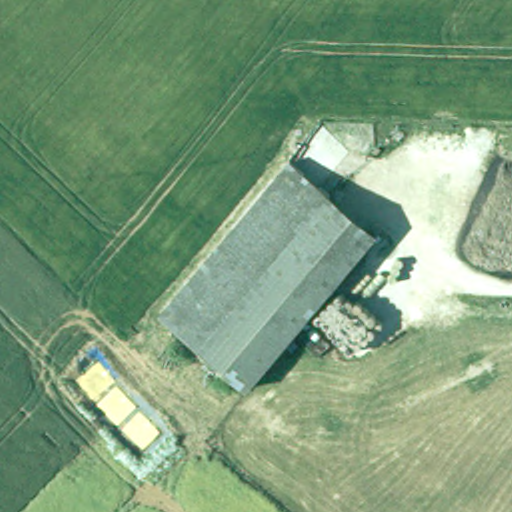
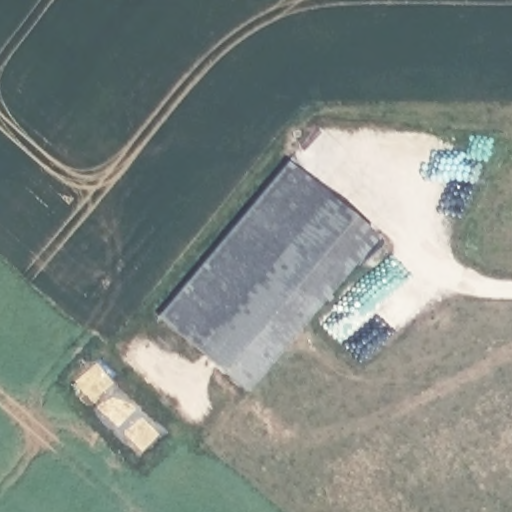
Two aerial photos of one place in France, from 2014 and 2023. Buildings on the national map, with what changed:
unchanged [(289,162),(374,235),(242,388),(157,315),(289,162)]

